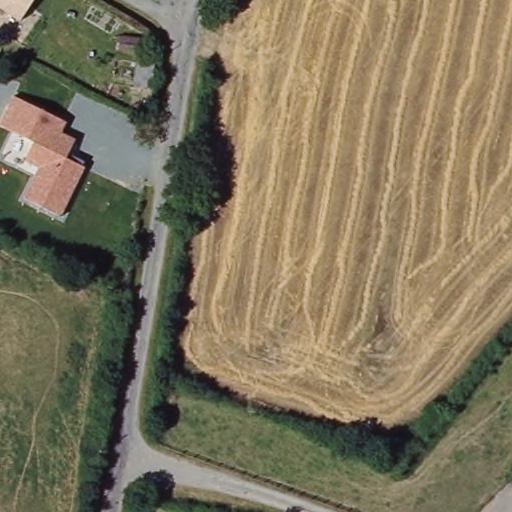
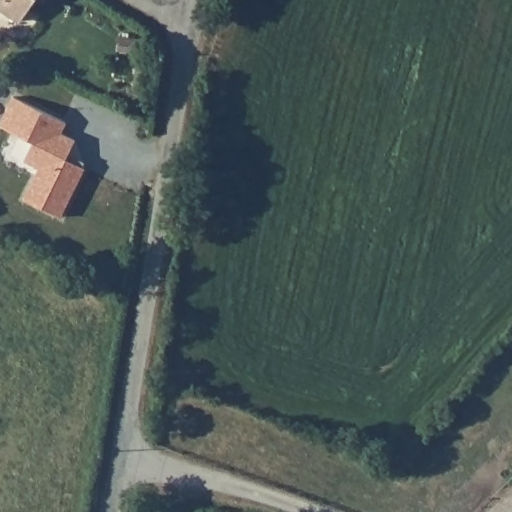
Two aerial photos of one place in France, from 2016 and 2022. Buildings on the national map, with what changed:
unchanged [(25,17),(0,1),(0,0),(38,0),(25,17)]
unchanged [(22,162),(30,142),(0,127),(0,120),(11,96),(65,122),(60,135),(74,140),(67,157),(84,165),(60,217),(23,199),(37,169),(22,162)]

